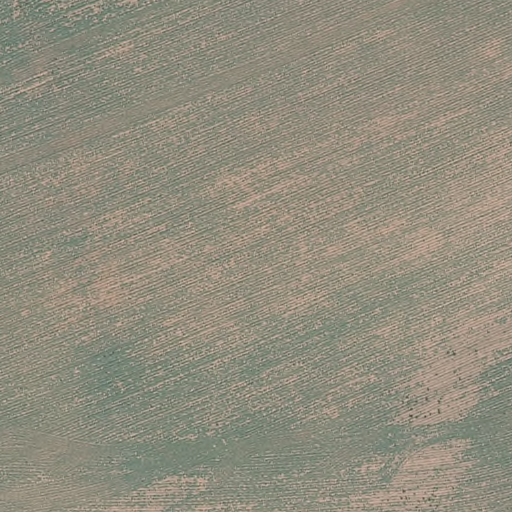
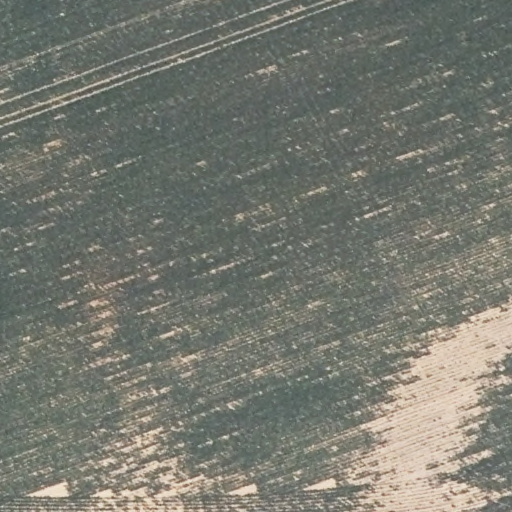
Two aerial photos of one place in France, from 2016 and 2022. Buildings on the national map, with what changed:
[]

